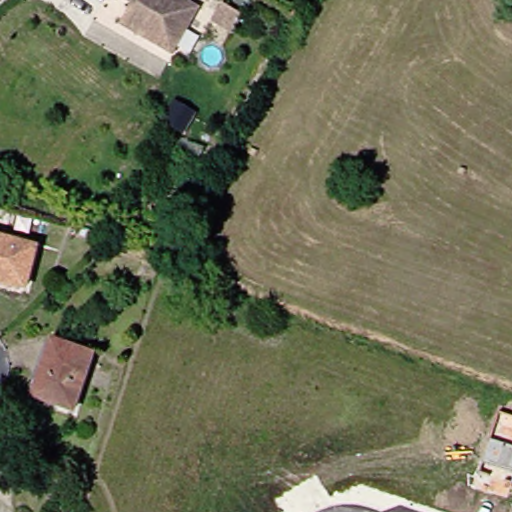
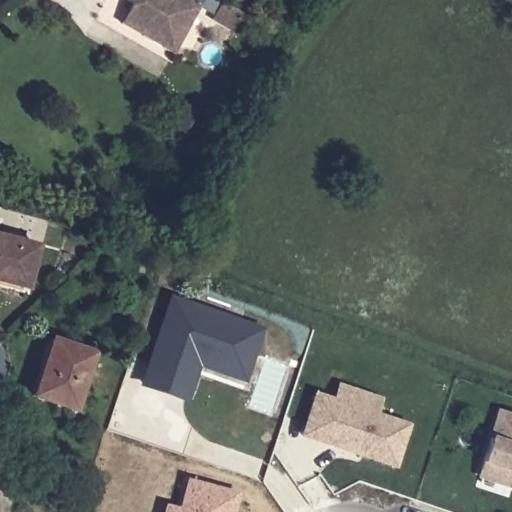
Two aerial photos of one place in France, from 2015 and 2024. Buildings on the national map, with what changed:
unchanged [(129,7),(132,1),(130,0),(193,0),(200,4),(172,51),(142,34),(120,21),(129,7)]
unchanged [(216,0),(237,12),(230,25),(210,12),(216,0)]
unchanged [(37,247),(26,287),(0,281),(0,237),(37,247)]
new [(225,370),(184,355),(171,392),(150,385),(179,301),(265,331),(257,356),(250,377),(225,370)]
unchanged [(93,353),(74,410),(34,396),(52,340),(93,353)]
new [(204,362),(191,399),(171,392),(184,355),(204,362)]
new [(387,398),(381,415),(340,401),(346,385),(387,398)]
new [(326,441),(308,435),(310,431),(322,395),(414,425),(401,466),(365,454),(358,452),(326,441)]
unchanged [(481,466),(489,437),(496,410),(512,415),(512,490),(477,479),(481,466)]
new [(181,512),(189,482),(237,495),(233,512),(166,512),(167,507),(181,512)]

